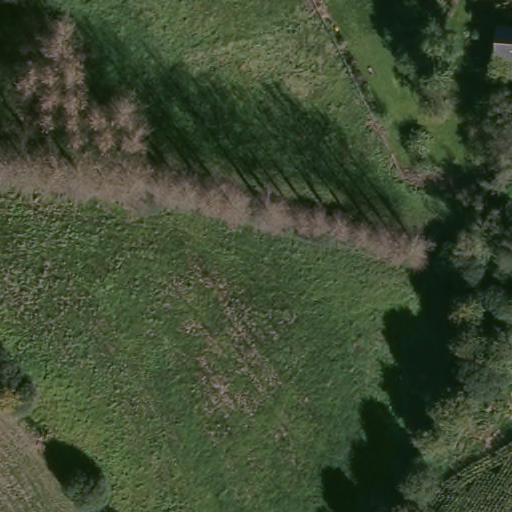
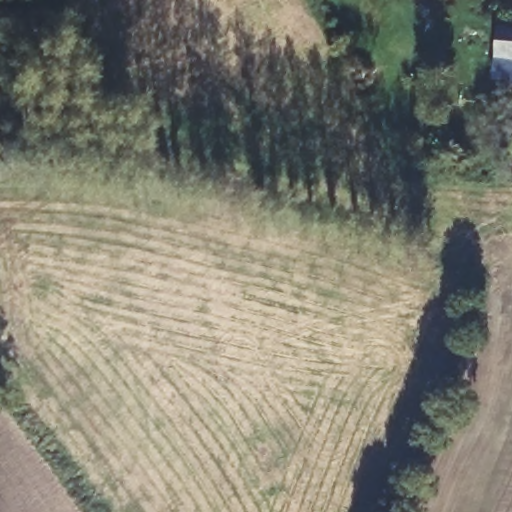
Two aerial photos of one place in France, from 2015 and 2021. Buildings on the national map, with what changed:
unchanged [(502,52),(507,19),(512,20),(512,53),(502,52)]
unchanged [(498,77),(502,52),(512,53),(512,79),(498,77)]

